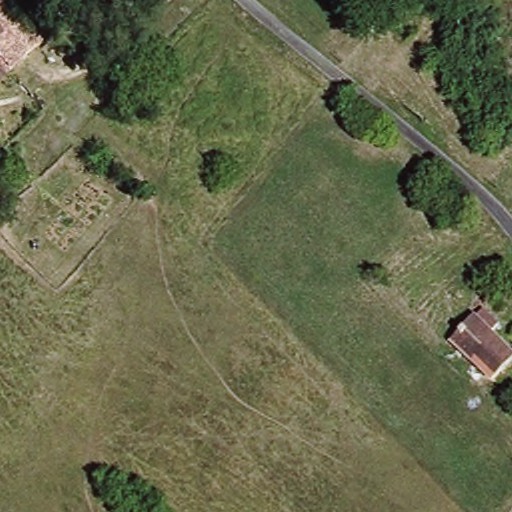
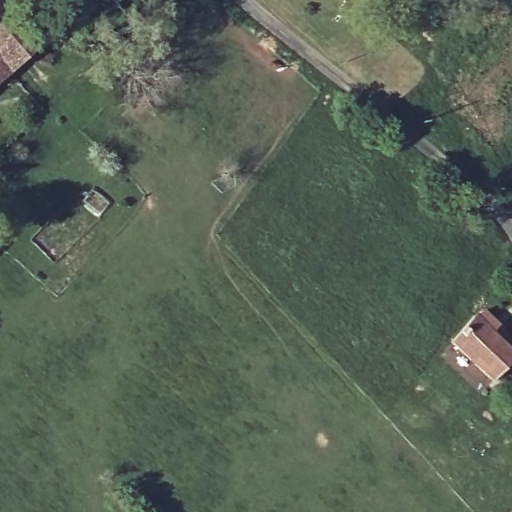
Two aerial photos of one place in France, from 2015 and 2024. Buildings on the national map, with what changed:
unchanged [(1,0),(18,21),(28,14),(38,26),(30,33),(33,37),(0,68),(0,0),(1,0)]
unchanged [(473,315),(479,320),(487,314),(497,330),(487,336),(507,367),(482,383),(450,331),(473,315)]

